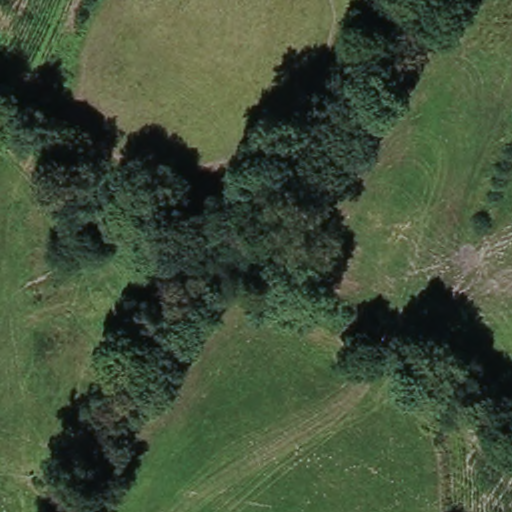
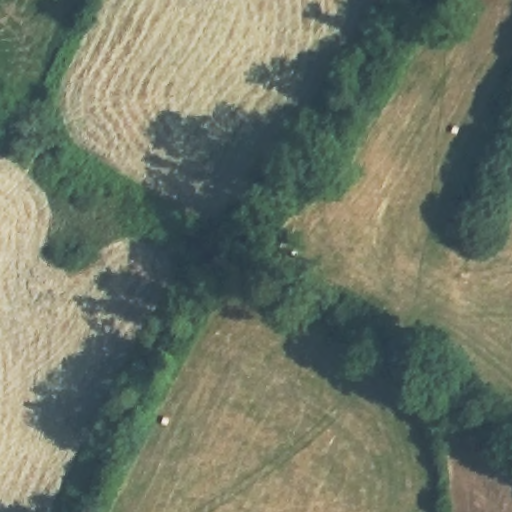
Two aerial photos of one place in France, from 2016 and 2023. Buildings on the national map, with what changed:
[]

